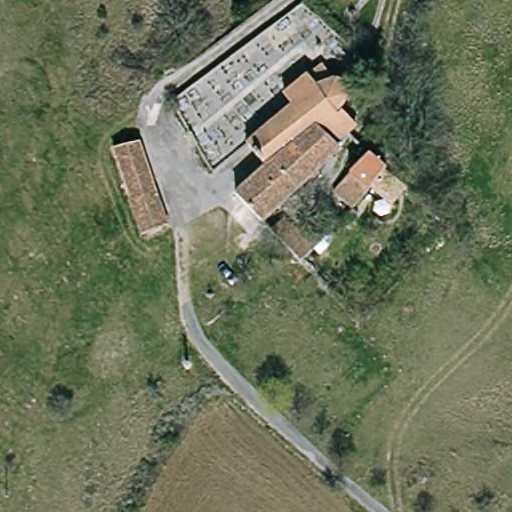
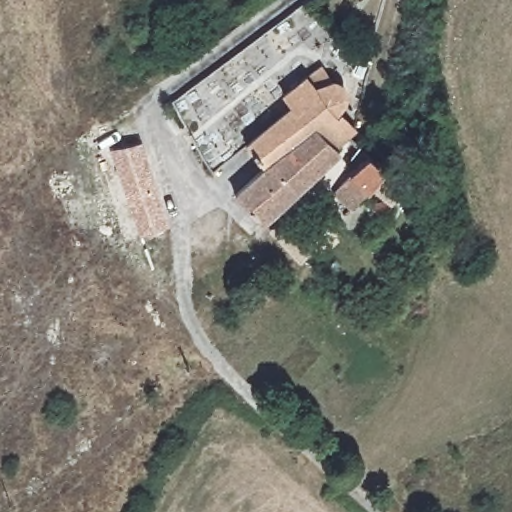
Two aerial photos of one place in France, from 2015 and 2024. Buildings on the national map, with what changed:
unchanged [(322,151),(329,160),(257,227),(229,198),(230,198),(259,170),(248,156),(240,146),(275,116),(279,113),(281,88),(288,83),(296,79),(302,79),(306,76),(316,69),(329,82),(343,81),(352,91),(353,92),(337,110),(349,124),(340,134),(322,151)]
unchanged [(105,156),(133,146),(161,230),(136,241),(105,156)]
unchanged [(359,174),(354,169),(372,151),(375,153),(390,167),(388,170),(355,209),(340,195),(359,174)]
unchanged [(297,269),(295,267),(266,236),(282,223),(311,256),(297,269)]

